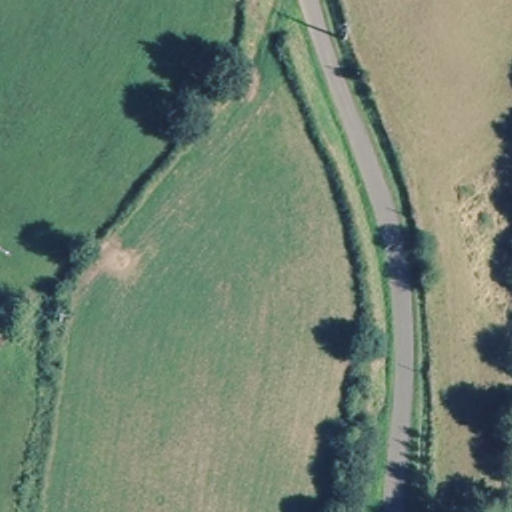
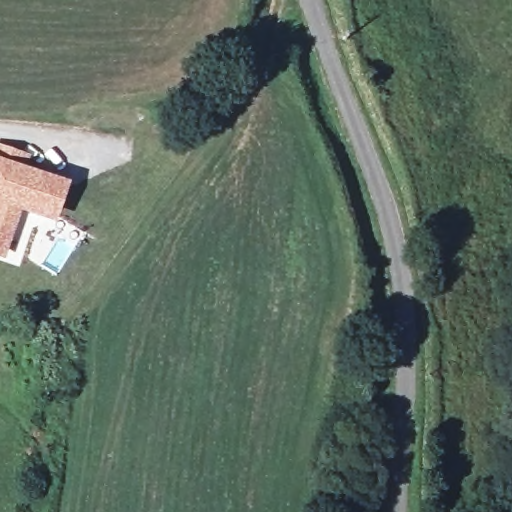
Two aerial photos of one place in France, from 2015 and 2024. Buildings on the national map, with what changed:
new [(36,157),(32,167),(72,182),(59,223),(22,212),(5,258),(0,257),(0,145),(36,157)]

